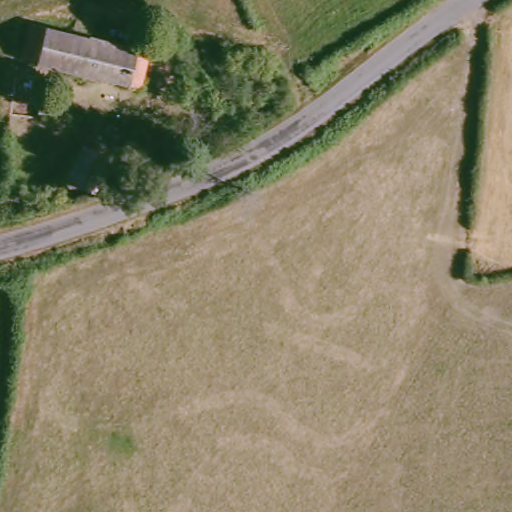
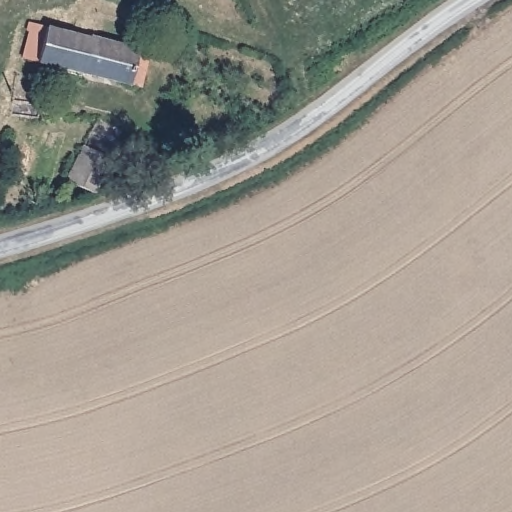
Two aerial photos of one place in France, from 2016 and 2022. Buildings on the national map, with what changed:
unchanged [(38,31),(98,40),(146,46),(158,48),(152,86),(31,71),(38,31)]
unchanged [(104,187),(75,179),(87,141),(116,150),(104,187)]

